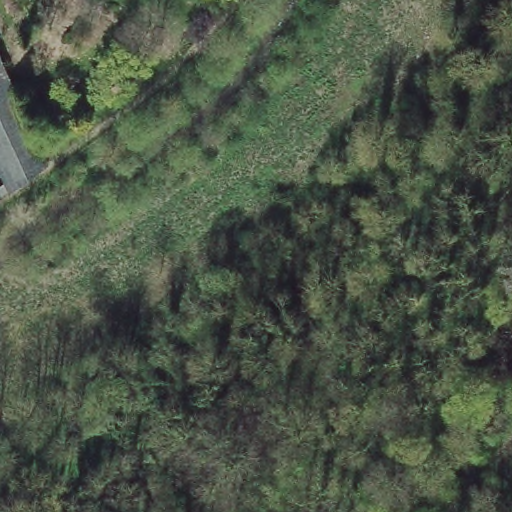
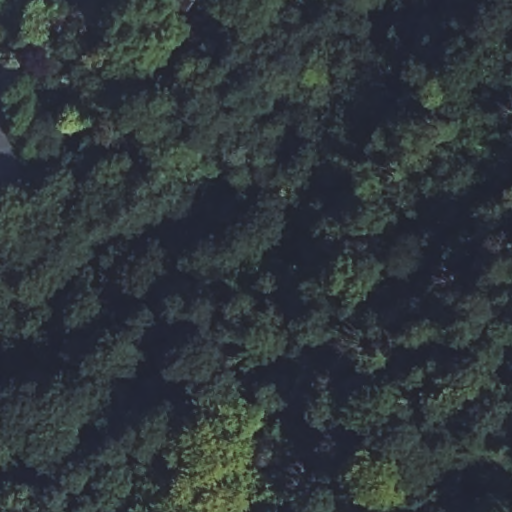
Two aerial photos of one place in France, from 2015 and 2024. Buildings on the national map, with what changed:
unchanged [(11,187),(0,163),(0,58),(55,169),(16,196),(11,187)]
unchanged [(11,187),(16,196),(0,208),(0,196),(11,187)]

